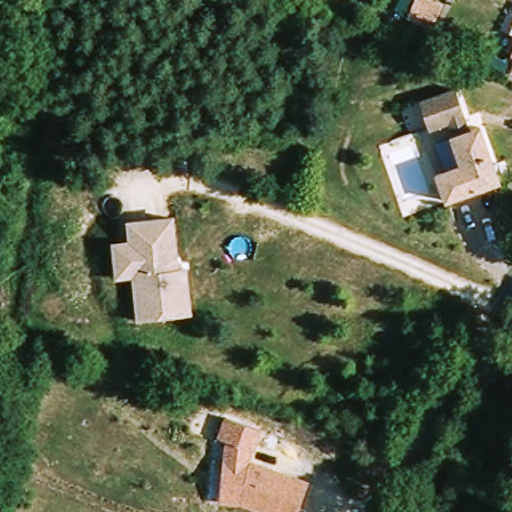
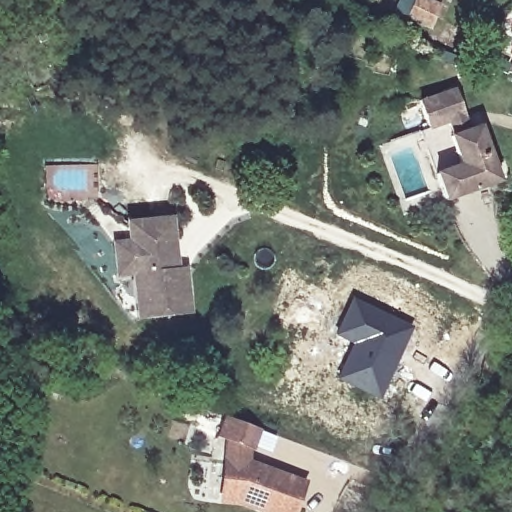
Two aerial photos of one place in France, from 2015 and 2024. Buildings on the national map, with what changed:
unchanged [(433,0),(442,4),(433,27),(394,11),(400,0),(433,0)]
unchanged [(489,68),(485,76),(474,71),(477,63),(489,68)]
unchanged [(452,88),(465,130),(476,126),(496,183),(441,202),(416,131),(426,128),(416,100),(452,88)]
unchanged [(132,276),(115,278),(111,241),(129,240),(128,220),(175,215),(179,267),(189,266),(193,313),(137,321),(132,276)]
new [(353,294),(415,324),(379,399),(335,377),(351,343),(334,334),(353,294)]
unchanged [(225,439),(219,435),(226,415),(263,428),(251,457),(309,480),(296,512),(263,512),(244,505),(219,502),(225,439)]

